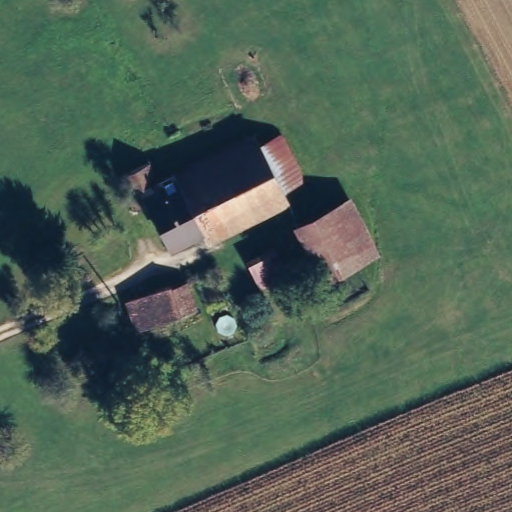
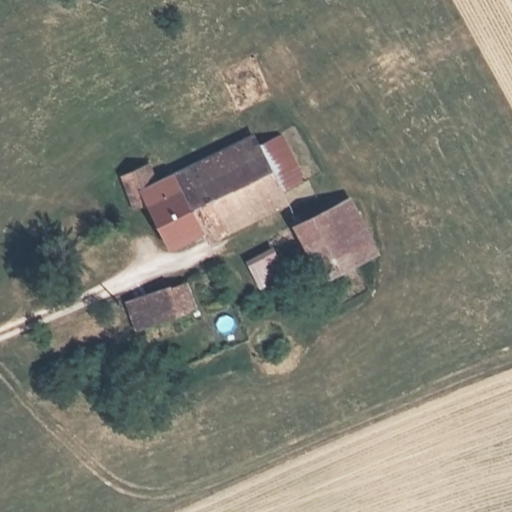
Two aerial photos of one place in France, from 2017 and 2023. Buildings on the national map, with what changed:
unchanged [(159,197),(145,204),(131,170),(158,158),(166,180),(173,176),(175,179),(200,166),(206,164),(203,158),(256,132),(262,145),(289,132),(310,175),(180,240),(159,197)]
unchanged [(350,198),(376,252),(355,262),(337,226),(305,241),(296,224),(350,198)]
unchanged [(355,262),(323,278),(305,241),(337,226),(355,262)]
unchanged [(273,245),(283,263),(259,275),(250,257),(273,245)]
unchanged [(176,285),(177,289),(190,285),(198,310),(164,322),(143,329),(133,300),(154,293),(176,285)]

